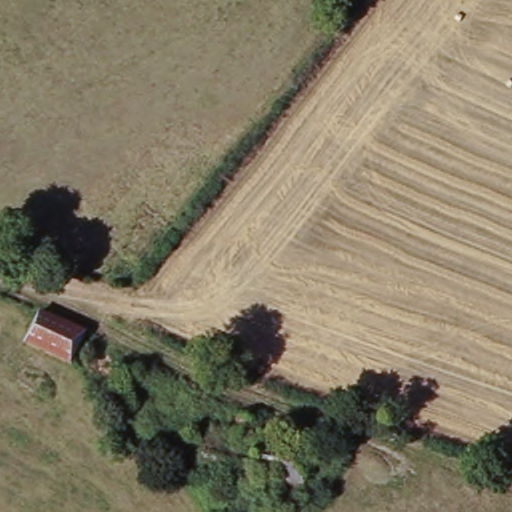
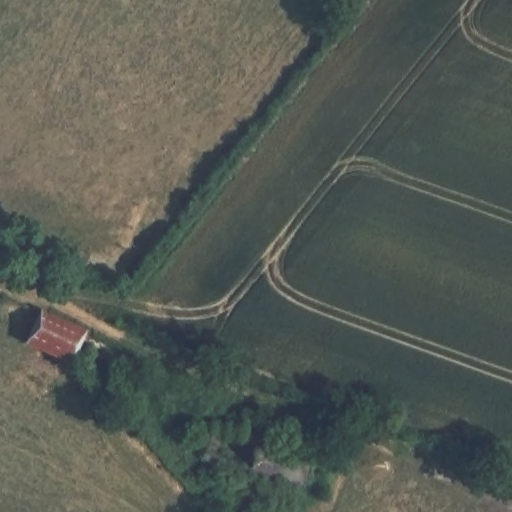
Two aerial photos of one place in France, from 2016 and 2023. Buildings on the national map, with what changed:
unchanged [(89,330),(78,362),(30,343),(44,310),(89,330)]

